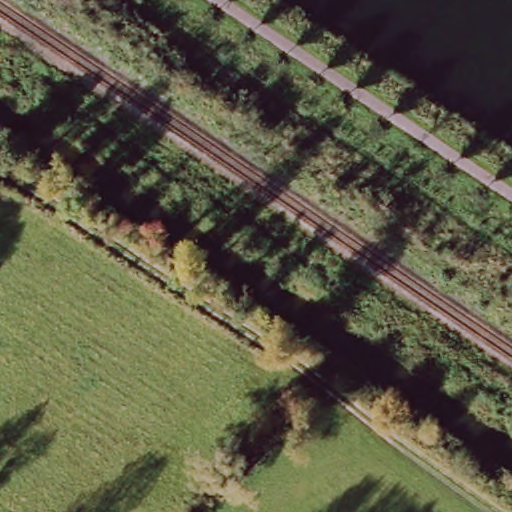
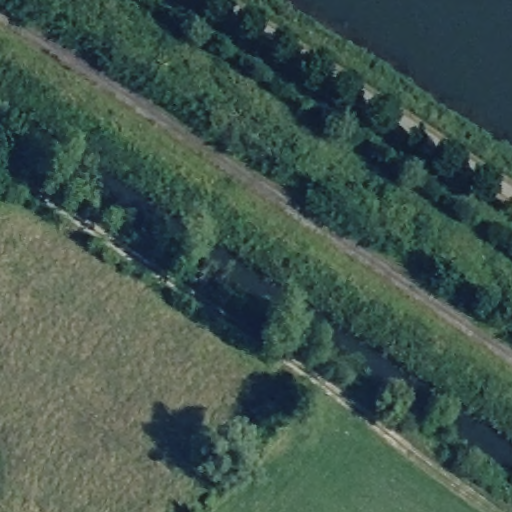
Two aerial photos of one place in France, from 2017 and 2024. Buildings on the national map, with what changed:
[]

